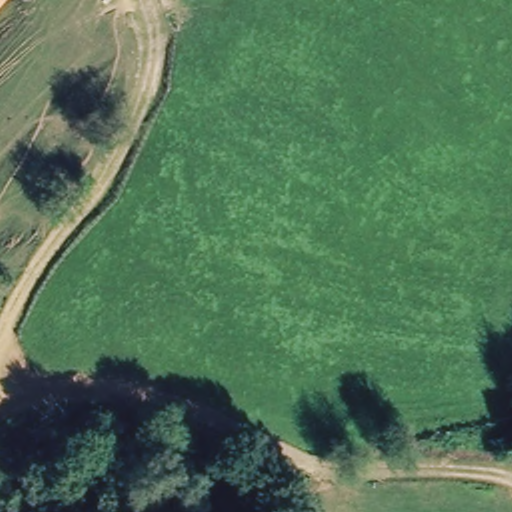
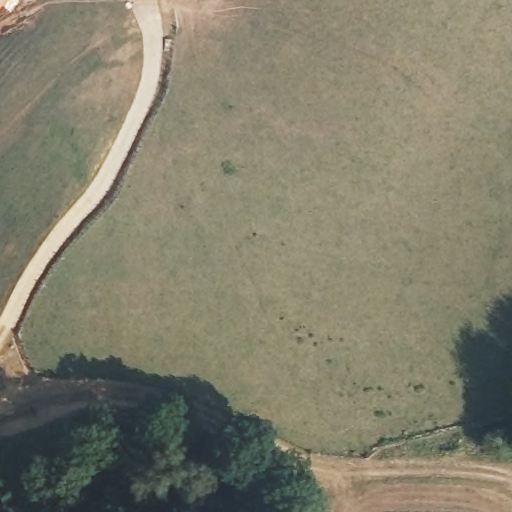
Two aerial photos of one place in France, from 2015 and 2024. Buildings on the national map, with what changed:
unchanged [(8,0),(0,9),(0,0),(8,0)]

